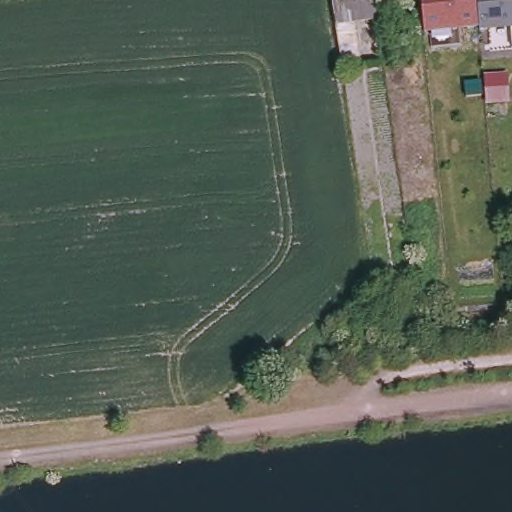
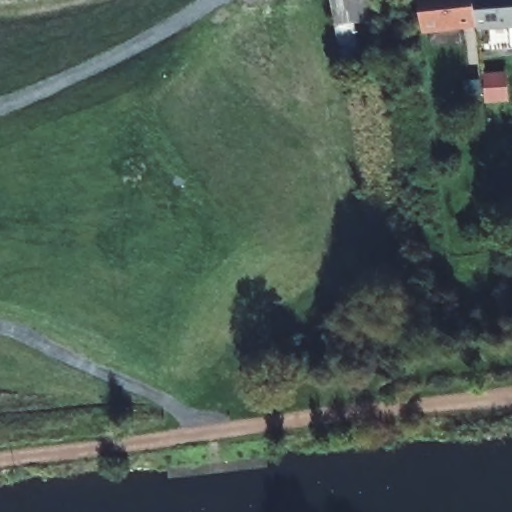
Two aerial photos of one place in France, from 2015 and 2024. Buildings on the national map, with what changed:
unchanged [(334,17),(333,0),(376,0),(377,13),(340,17),(334,17)]
unchanged [(472,24),(419,29),(416,0),(469,0),(472,24)]
unchanged [(507,25),(479,27),(477,0),(512,0),(512,24),(507,25)]
unchanged [(339,58),(337,37),(341,36),(354,35),(356,57),(344,58),(339,58)]

